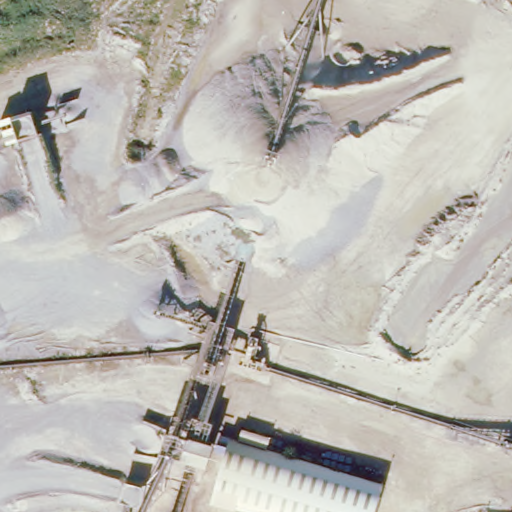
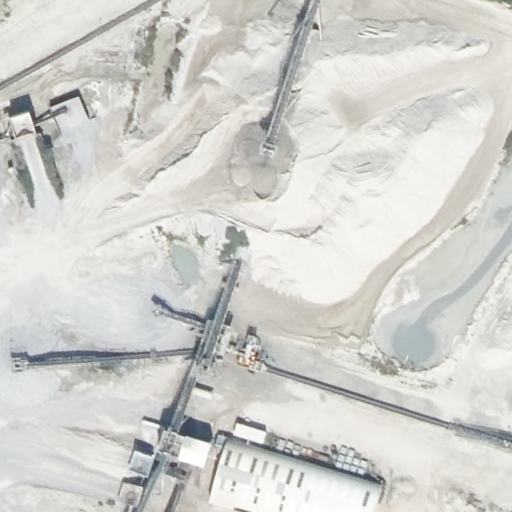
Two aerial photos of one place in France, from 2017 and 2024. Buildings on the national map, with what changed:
unchanged [(384,487),(375,512),(256,512),(213,500),(227,440),(384,487)]

